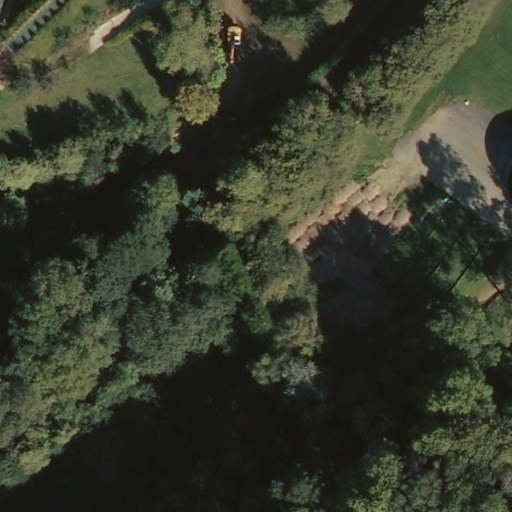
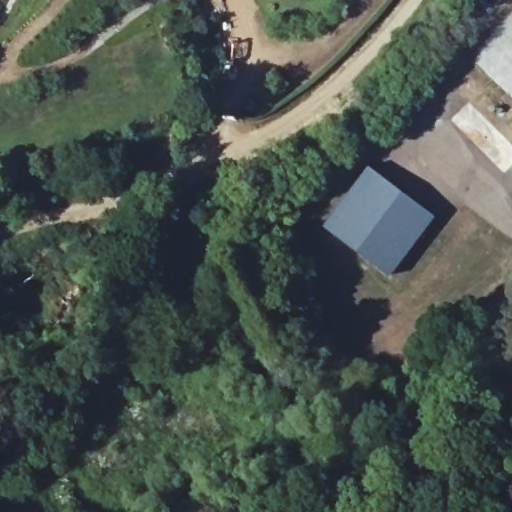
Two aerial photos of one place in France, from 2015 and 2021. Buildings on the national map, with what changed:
new [(435,215),(388,277),(321,227),(367,165),(435,215)]

